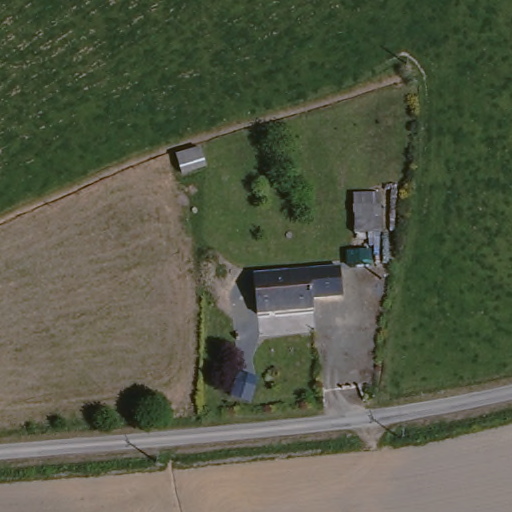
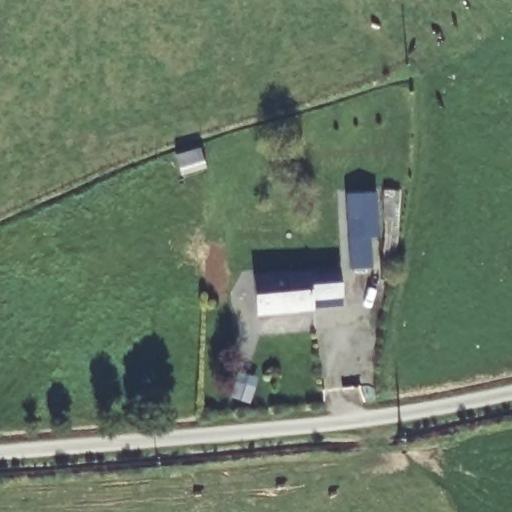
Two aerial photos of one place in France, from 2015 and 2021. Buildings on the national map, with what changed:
unchanged [(176,155),(202,146),(209,165),(182,174),(176,155)]
unchanged [(334,199),(358,196),(362,235),(338,237),(334,199)]
unchanged [(333,256),(354,254),(356,270),(335,272),(333,256)]
unchanged [(254,316),(249,280),(309,271),(315,309),(297,311),(294,311),(274,314),(254,316)]

